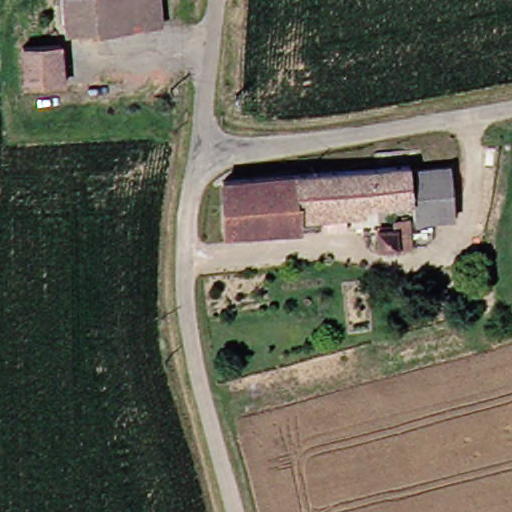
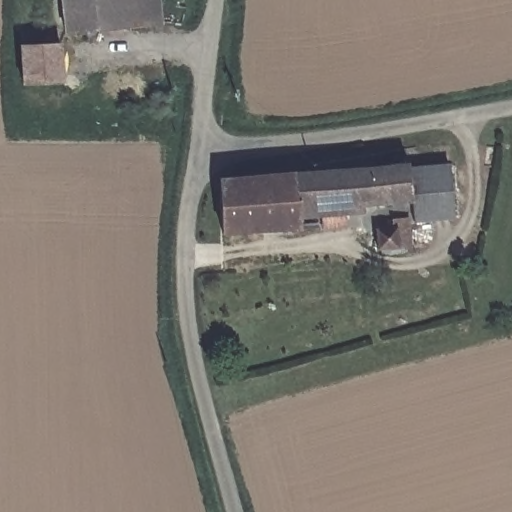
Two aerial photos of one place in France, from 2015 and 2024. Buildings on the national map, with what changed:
unchanged [(61,30),(58,0),(154,0),(156,20),(122,24),(94,27),(61,30)]
unchanged [(56,42),(58,79),(20,81),(18,44),(56,42)]
unchanged [(402,164),(403,170),(443,166),(447,216),(410,220),(411,246),(372,250),(370,233),(378,232),(376,204),(290,212),(290,229),(215,233),(214,183),(218,180),(402,164)]

